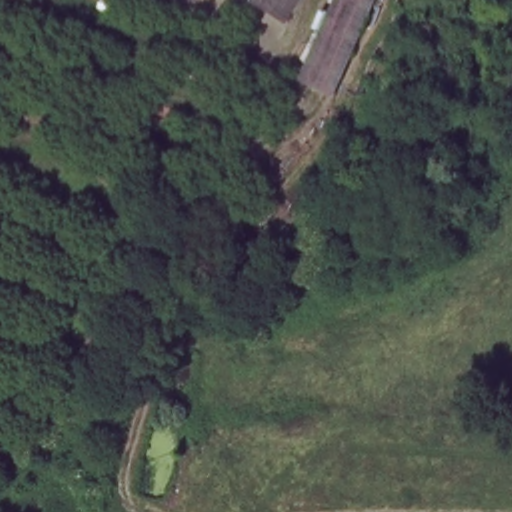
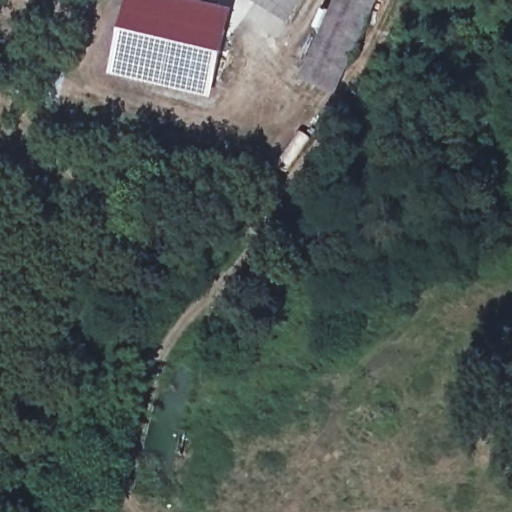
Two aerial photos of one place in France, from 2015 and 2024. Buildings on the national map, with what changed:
unchanged [(247,0),(296,0),(279,23),(247,0)]
unchanged [(295,78),(336,0),(376,0),(328,94),(295,78)]
new [(221,29),(204,116),(102,95),(122,6),(221,29)]

